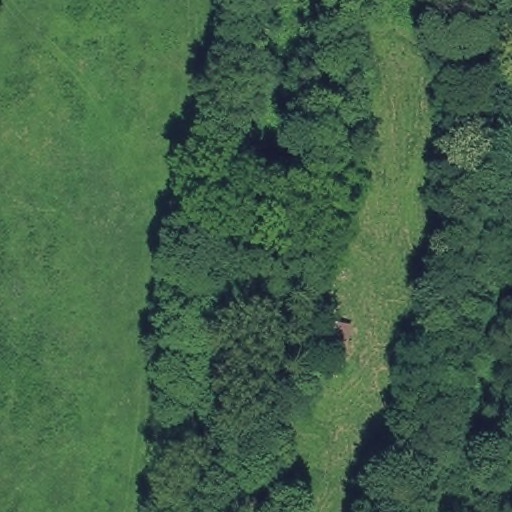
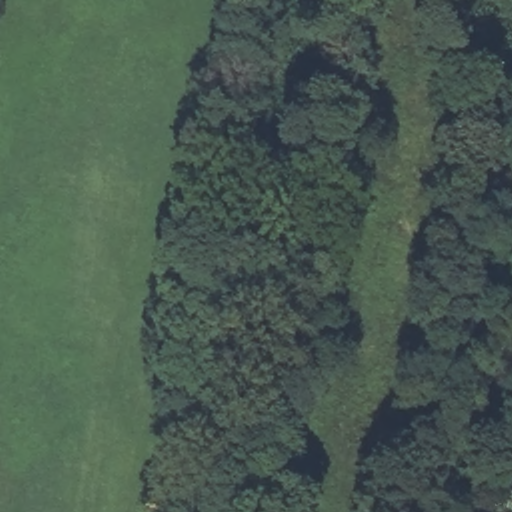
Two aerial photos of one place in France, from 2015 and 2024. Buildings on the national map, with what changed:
unchanged [(357,325),(341,357),(319,352),(332,321),(357,325)]

